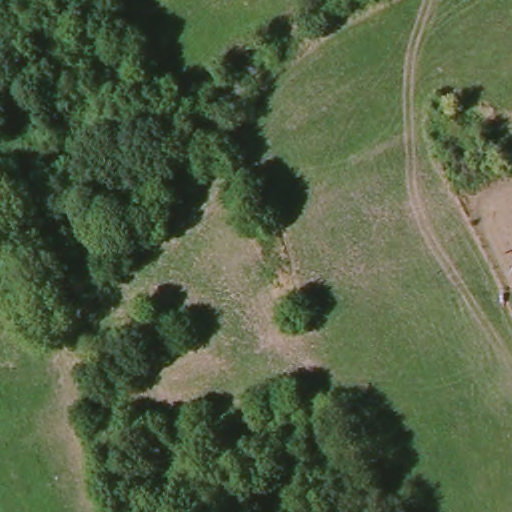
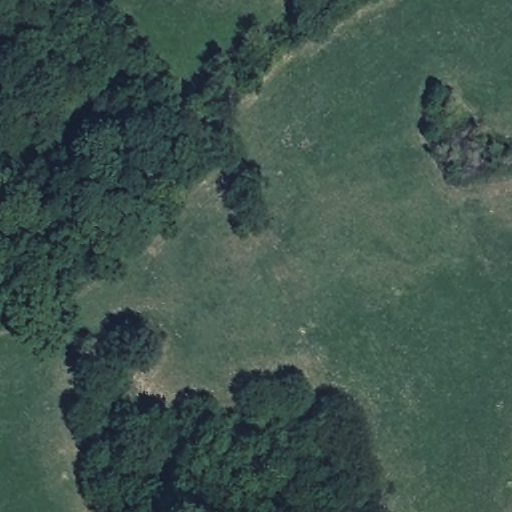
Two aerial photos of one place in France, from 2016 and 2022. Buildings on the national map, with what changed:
unchanged [(244,275),(254,270),(260,281),(250,286),(244,275)]

